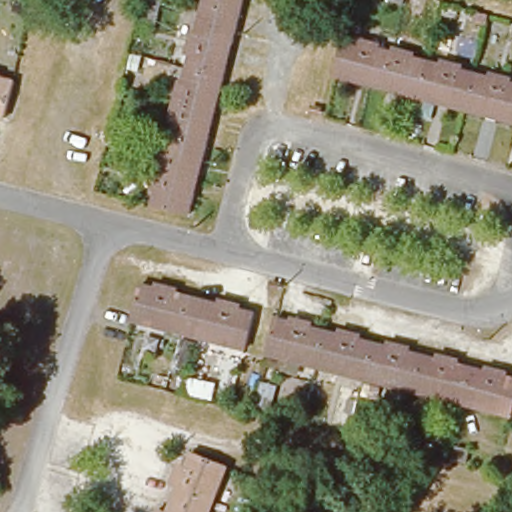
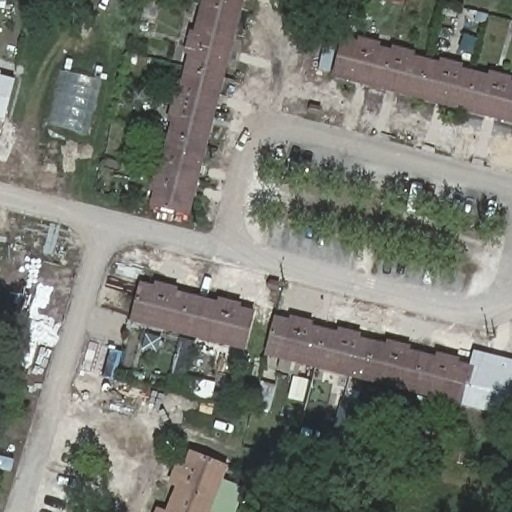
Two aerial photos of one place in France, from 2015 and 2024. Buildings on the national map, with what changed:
unchanged [(159,0),(154,22),(134,16),(138,0),(159,0)]
unchanged [(188,83),(192,66),(195,53),(189,50),(194,32),(200,34),(208,3),(208,0),(246,0),(193,216),(156,207),(161,189),(155,188),(159,166),(164,150),(170,151),(174,135),(178,123),(171,120),(176,101),(181,81),(188,83)]
unchanged [(333,80),(343,41),(358,46),(359,41),(381,46),(380,51),(393,55),(395,49),(412,54),(410,59),(425,63),(439,67),(442,62),(462,68),(460,73),(475,76),(489,80),(490,75),(510,81),(509,85),(512,86),(512,126),(333,80)]
unchanged [(14,116),(0,112),(0,68),(28,75),(14,116)]
new [(101,80),(90,136),(49,125),(61,70),(101,80)]
unchanged [(144,284),(160,287),(161,282),(181,287),(180,293),(227,304),(228,299),(246,303),(245,309),(259,312),(250,349),(200,337),(135,321),(144,284)]
unchanged [(270,361),(279,323),(293,327),(295,321),(313,326),(312,331),(340,338),(341,333),(362,338),(361,343),(389,350),(391,345),(409,349),(408,354),(438,362),(439,357),(459,362),(458,367),(486,373),(487,369),(508,374),(507,378),(512,379),(512,420),(463,408),(415,396),(365,384),(317,372),(270,361)]
unchanged [(214,381),(209,400),(181,394),(187,375),(214,381)]
unchanged [(467,448),(464,465),(449,463),(453,447),(467,448)]
unchanged [(224,467),(207,512),(155,512),(156,507),(163,509),(173,485),(169,483),(177,463),(183,465),(186,453),(224,467)]

